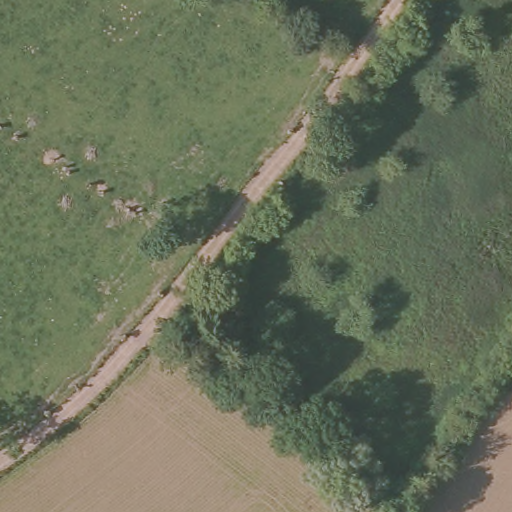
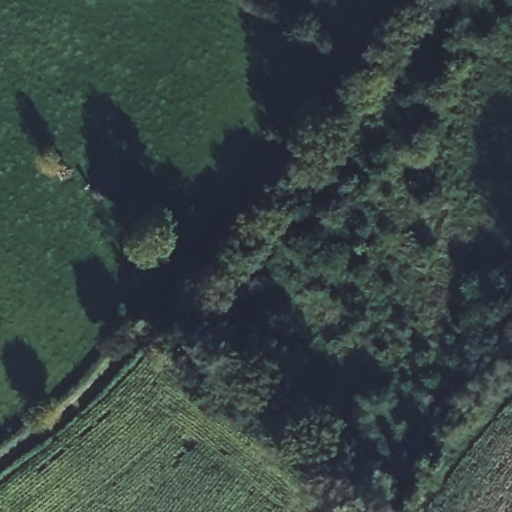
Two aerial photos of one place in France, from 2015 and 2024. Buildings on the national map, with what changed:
[]

